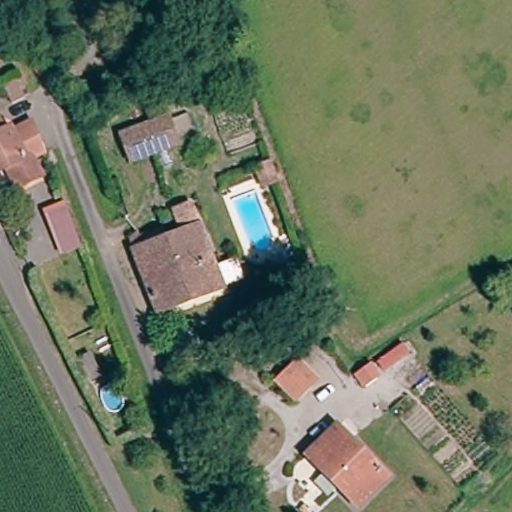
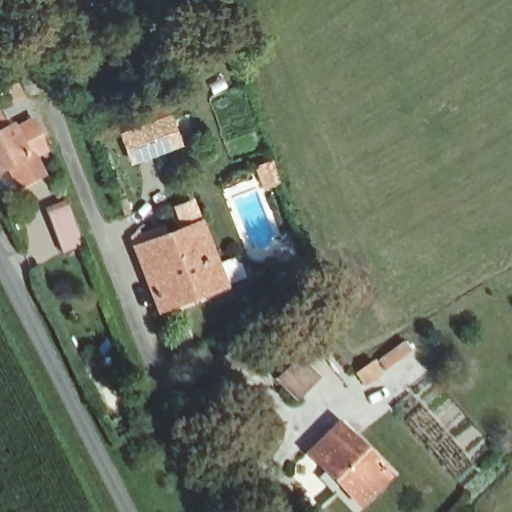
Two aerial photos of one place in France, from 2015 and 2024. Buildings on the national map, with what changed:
unchanged [(171,110),(180,142),(130,157),(121,126),(171,110)]
unchanged [(3,135),(12,133),(24,162),(32,158),(40,179),(11,193),(2,170),(0,172),(0,129),(3,135)]
unchanged [(60,233),(50,208),(69,201),(77,225),(60,233)]
unchanged [(127,241),(162,230),(165,237),(183,232),(175,209),(193,203),(200,226),(206,243),(221,290),(155,313),(130,249),(127,241)]
unchanged [(401,342),(409,351),(385,373),(377,363),(401,342)]
unchanged [(299,362),(315,382),(297,398),(281,378),(299,362)]
unchanged [(369,364),(380,377),(366,392),(354,379),(369,364)]
unchanged [(311,447),(337,423),(385,476),(356,505),(335,485),(305,453),(311,447)]

